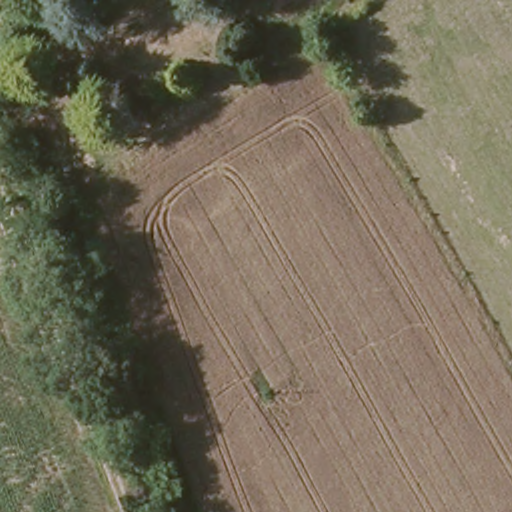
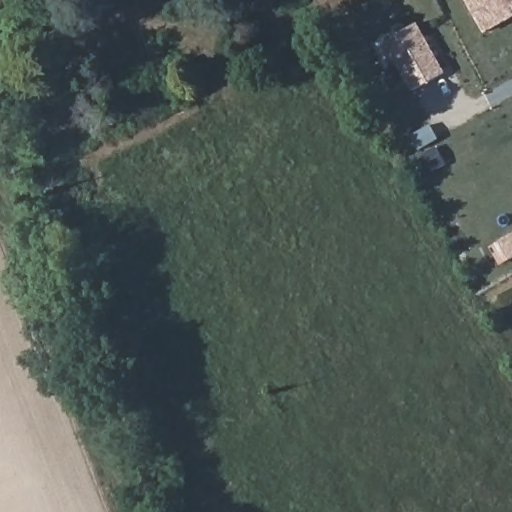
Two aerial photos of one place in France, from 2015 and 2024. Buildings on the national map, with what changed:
new [(467,0),(512,0),(512,19),(486,34),(467,0)]
new [(385,41),(417,24),(445,73),(413,91),(385,41)]

